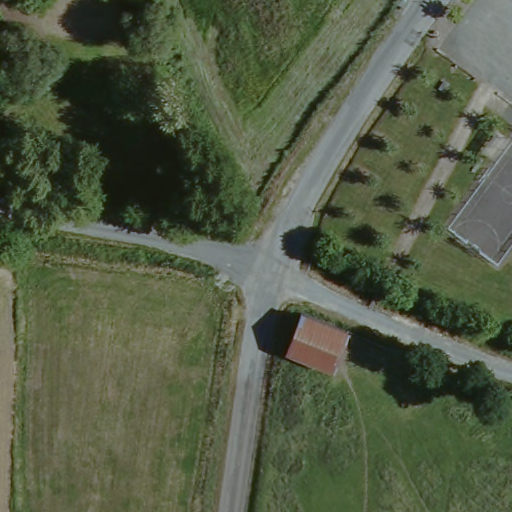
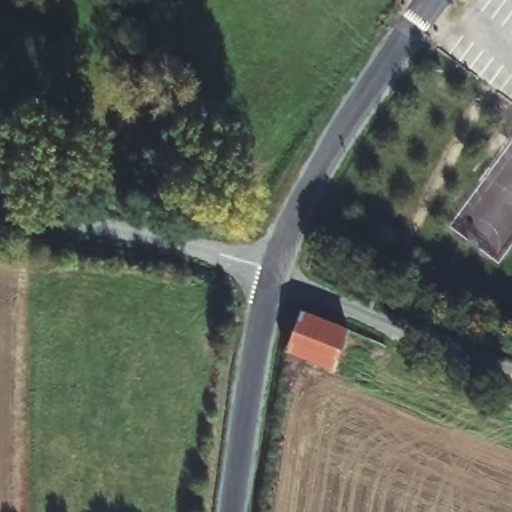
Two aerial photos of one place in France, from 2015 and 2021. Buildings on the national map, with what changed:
unchanged [(286,352),(304,312),(349,332),(333,371),(286,352)]

